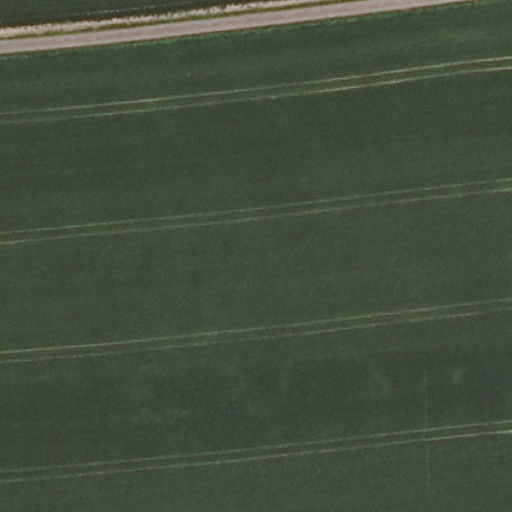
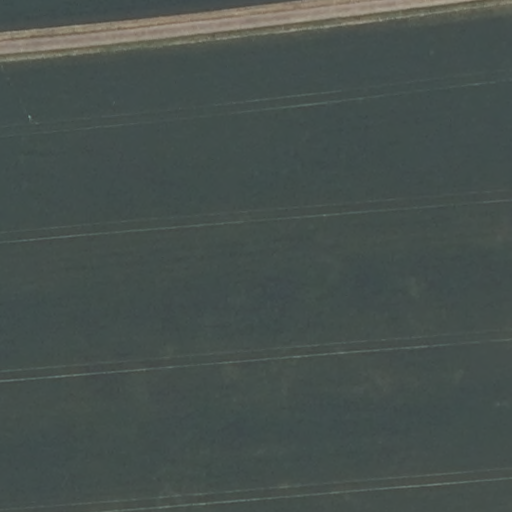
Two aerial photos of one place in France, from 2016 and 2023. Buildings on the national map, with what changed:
[]

